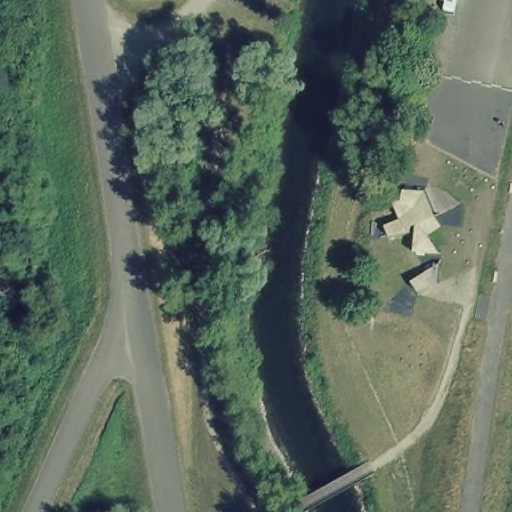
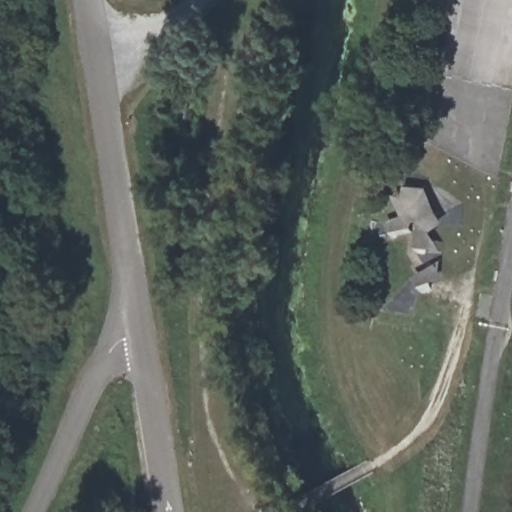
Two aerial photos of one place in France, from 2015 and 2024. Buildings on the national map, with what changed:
unchanged [(432,234),(443,256),(415,256),(414,230),(389,240),(385,225),(399,217),(394,201),(403,186),(425,186),(446,225),(432,234)]

